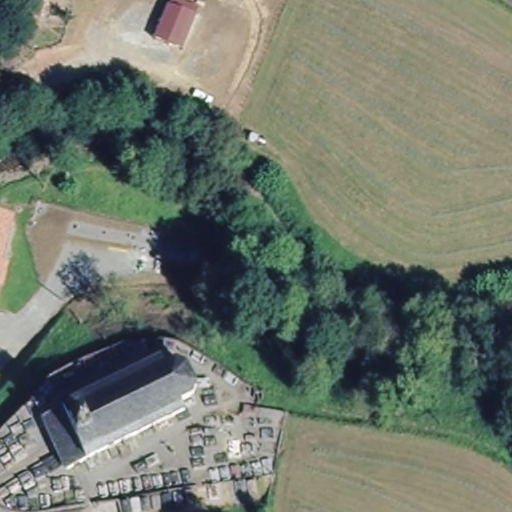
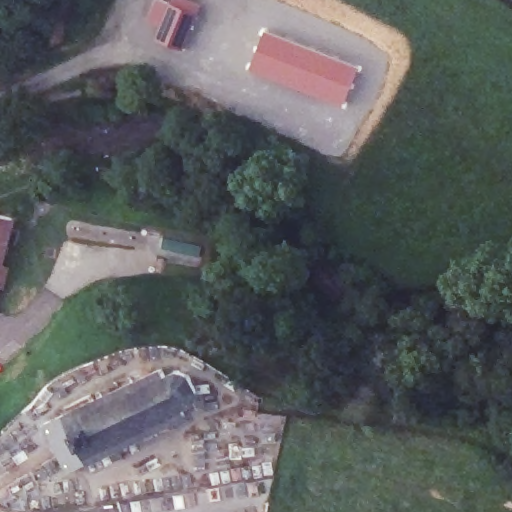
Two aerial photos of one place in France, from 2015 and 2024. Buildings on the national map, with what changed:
unchanged [(187,0),(200,5),(184,49),(153,39),(168,0),(187,0)]
new [(266,31),(356,69),(353,77),(348,75),(342,90),(328,90),(327,99),(249,71),(266,31)]
unchanged [(7,215),(0,252),(0,214),(7,215)]
unchanged [(65,415),(83,406),(180,360),(189,358),(199,359),(207,363),(213,370),(217,377),(217,386),(216,390),(201,399),(203,403),(103,448),(86,456),(65,415)]

